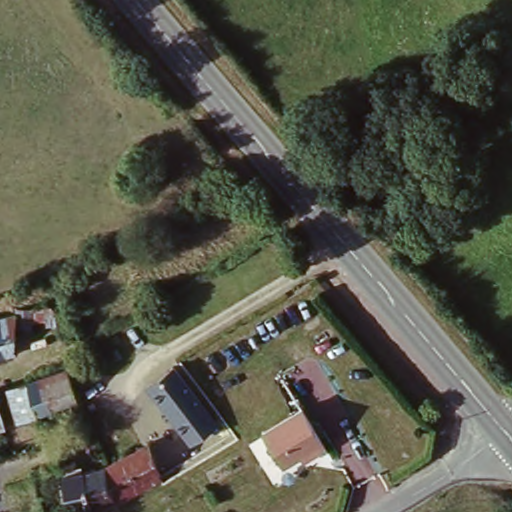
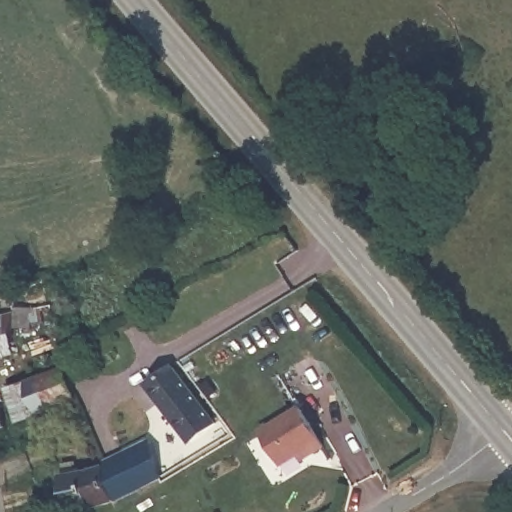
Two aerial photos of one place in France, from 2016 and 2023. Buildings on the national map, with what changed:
unchanged [(2,355),(0,355),(0,317),(26,311),(22,350),(12,353),(12,362),(6,364),(2,355)]
unchanged [(67,365),(82,403),(41,418),(24,424),(9,389),(31,380),(67,365)]
unchanged [(213,420),(188,440),(145,384),(170,365),(213,420)]
unchanged [(322,447),(300,461),(300,456),(281,467),(261,434),(300,410),(322,447)]
unchanged [(113,506),(101,472),(146,448),(162,480),(113,506)]
unchanged [(105,509),(91,512),(66,512),(61,486),(101,472),(113,506),(105,509)]

